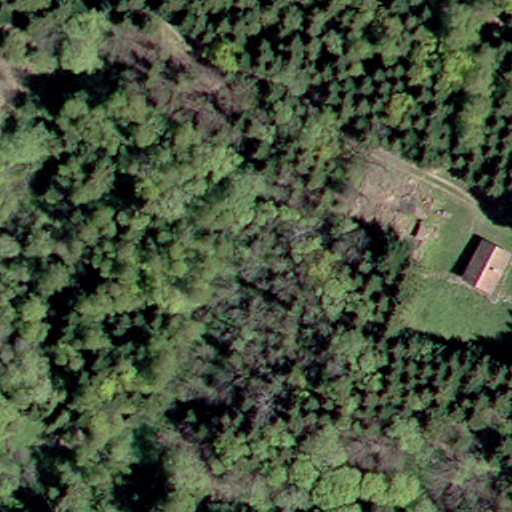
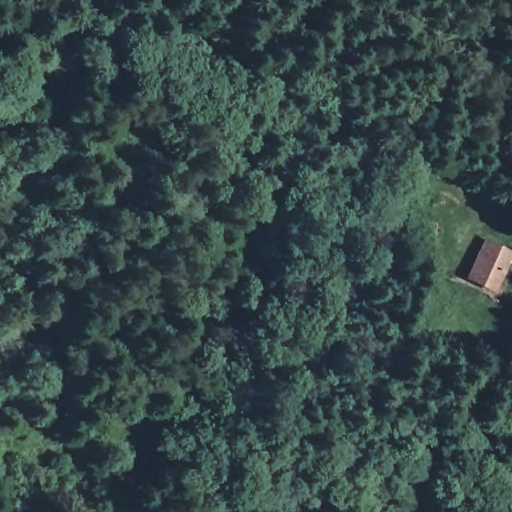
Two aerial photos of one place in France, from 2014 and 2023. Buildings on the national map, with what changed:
unchanged [(512,256),(512,267),(495,298),(467,283),(485,247),(512,256)]

